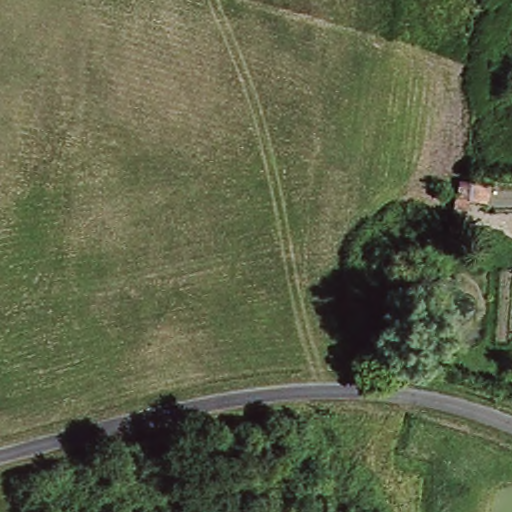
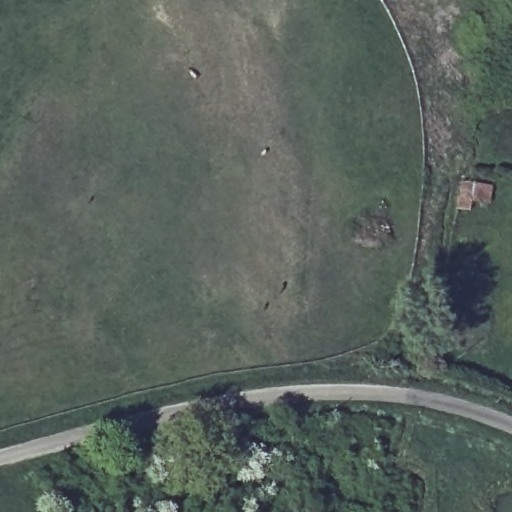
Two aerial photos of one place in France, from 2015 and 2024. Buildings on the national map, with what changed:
unchanged [(488,185),(484,214),(452,209),(457,182),(488,185)]

